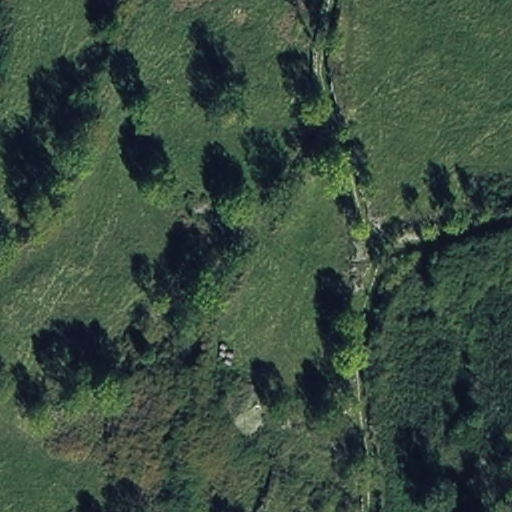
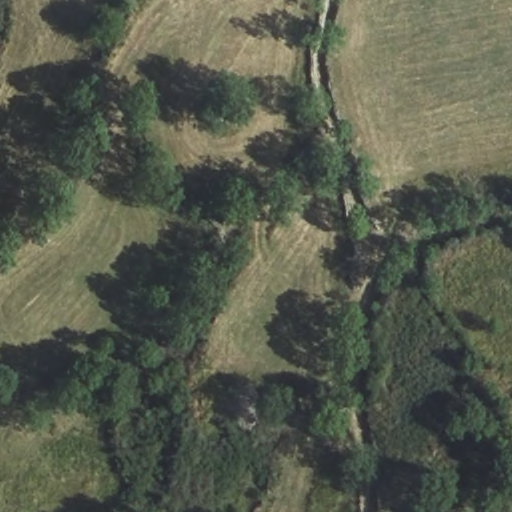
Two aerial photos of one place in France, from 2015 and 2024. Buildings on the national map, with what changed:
[]

